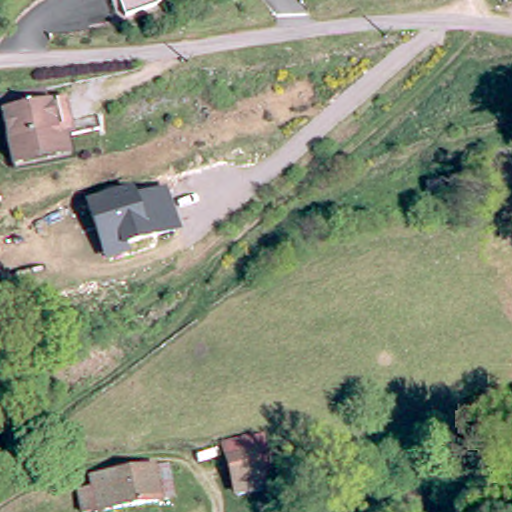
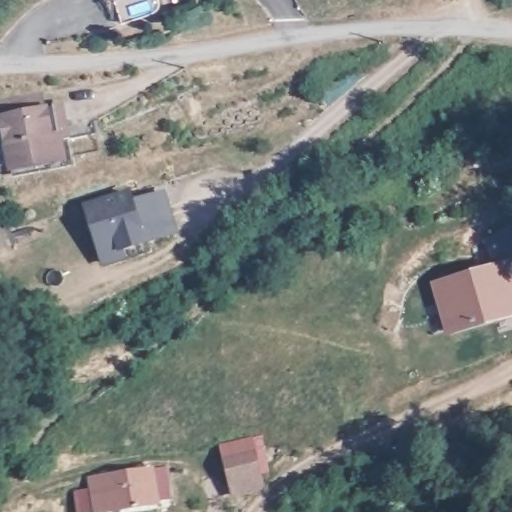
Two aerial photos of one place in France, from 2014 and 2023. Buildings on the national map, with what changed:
unchanged [(90,114),(92,130),(63,135),(65,149),(6,158),(0,120),(0,104),(55,96),(58,119),(90,114)]
unchanged [(133,198),(165,189),(179,234),(126,252),(127,259),(102,266),(82,203),(130,189),(133,198)]
new [(512,234),(512,268),(507,271),(505,264),(494,266),(490,246),(512,234)]
new [(448,330),(447,326),(437,278),(494,266),(505,264),(507,271),(512,295),(512,316),(448,330)]
unchanged [(263,497),(250,496),(228,503),(225,484),(220,447),(270,440),(271,459),(263,462),(265,477),(265,480),(263,497)]
unchanged [(73,493),(90,492),(90,475),(173,471),(175,504),(112,512),(76,512),(73,493)]

